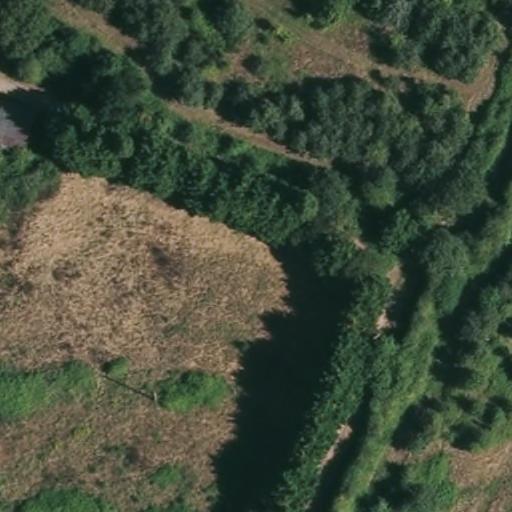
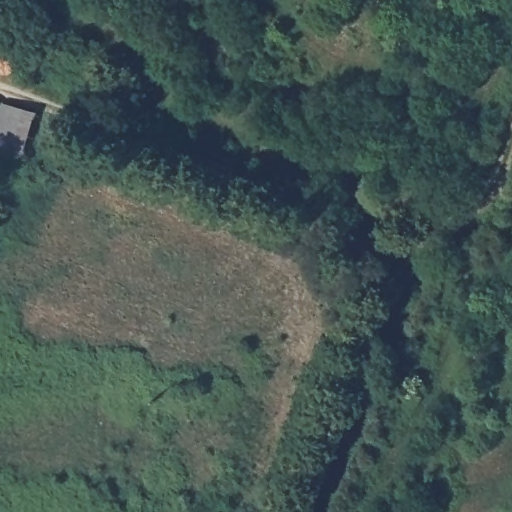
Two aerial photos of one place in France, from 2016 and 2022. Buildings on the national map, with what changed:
unchanged [(0,154),(0,103),(40,113),(26,163),(0,154)]

